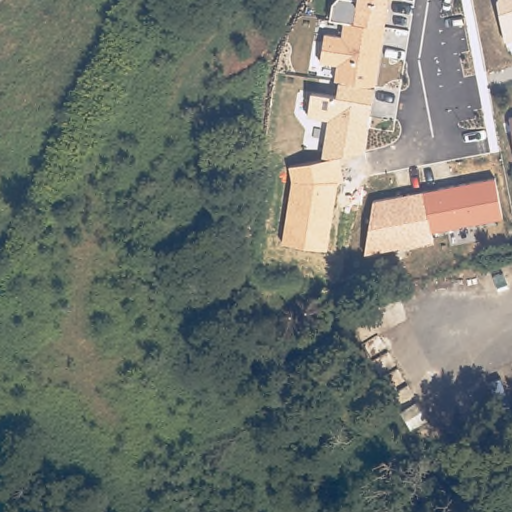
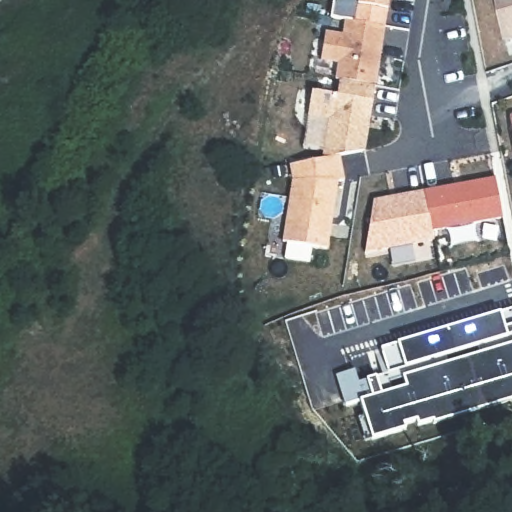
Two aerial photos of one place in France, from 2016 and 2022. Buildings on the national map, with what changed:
unchanged [(292,179),(288,165),(322,159),(329,119),(307,115),(311,91),(337,95),(337,80),(334,80),(337,64),(322,61),(326,31),(342,34),(344,20),(332,17),(334,0),(390,0),(388,10),(376,85),(365,151),(340,155),(345,180),(339,180),(328,249),(283,241),(292,179)]
unchanged [(496,0),(512,0),(512,39),(504,41),(496,0)]
unchanged [(512,119),(512,128),(510,119),(512,119)]
unchanged [(432,231),(434,241),(366,255),(372,200),(495,176),(503,218),(432,231)]
new [(381,348),(512,309),(512,334),(388,372),(381,348)]
new [(365,416),(360,401),(346,405),(337,376),(355,370),(358,382),(367,380),(370,387),(512,344),(512,401),(366,442),(358,418),(365,416)]

